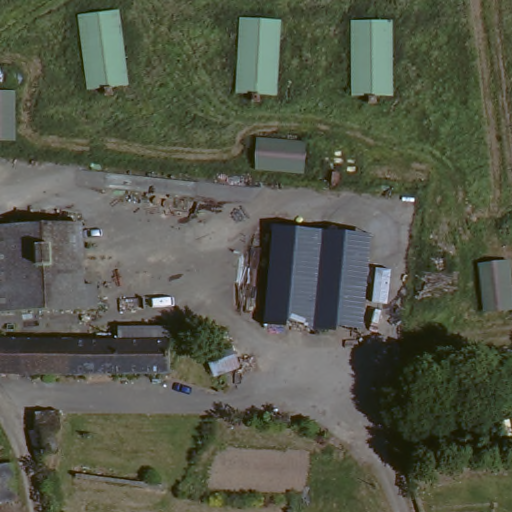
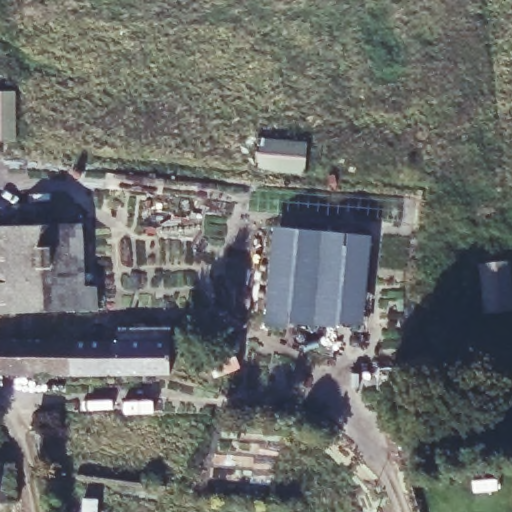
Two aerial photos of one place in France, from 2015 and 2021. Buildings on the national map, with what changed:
demolished [(123,8),(132,85),(89,86),(81,12),(123,8)]
demolished [(241,17),(284,17),(277,97),(235,89),(241,17)]
demolished [(351,18),(394,21),(396,96),(349,96),(351,18)]
unchanged [(18,144),(0,142),(0,89),(20,91),(18,144)]
unchanged [(312,140),(311,174),(261,169),(262,137),(312,140)]
unchanged [(75,312),(0,312),(0,224),(74,223),(75,312)]
unchanged [(319,246),(305,335),(261,328),(274,239),(319,246)]
unchanged [(319,246),(320,240),(372,249),(356,339),(333,335),(332,340),(305,335),(319,246)]
unchanged [(512,261),(512,314),(487,316),(483,264),(512,261)]
unchanged [(119,328),(171,329),(169,378),(0,376),(0,343),(119,344),(119,328)]
unchanged [(232,338),(238,369),(209,374),(203,344),(232,338)]
unchanged [(43,421),(42,403),(62,403),(62,421),(60,425),(62,455),(58,460),(54,463),(48,464),(41,462),(34,453),(32,420),(43,421)]
unchanged [(467,440),(469,410),(512,409),(512,443),(467,440)]
unchanged [(10,469),(13,507),(0,508),(0,466),(8,466),(10,469)]

